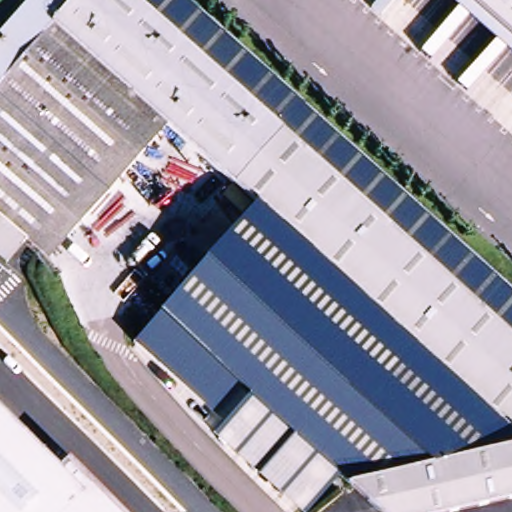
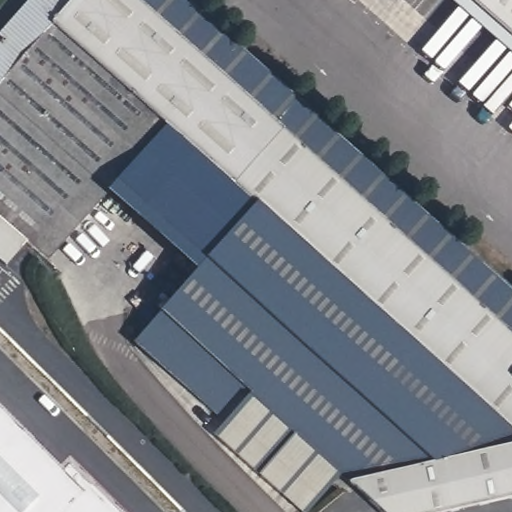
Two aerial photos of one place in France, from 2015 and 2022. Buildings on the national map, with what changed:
unchanged [(26,242),(5,265),(0,261),(0,38),(33,0),(62,0),(67,5),(52,21),(168,125),(47,261),(26,242)]
unchanged [(336,275),(168,125),(52,21),(67,5),(71,0),(134,0),(192,51),(466,292),(476,281),(512,313),(512,431),(336,275)]
unchanged [(156,20),(134,0),(175,0),(156,20)]
unchanged [(446,0),(512,0),(512,58),(446,0)]
new [(168,125),(254,202),(198,272),(108,193),(168,125)]
unchanged [(336,275),(512,431),(512,440),(357,473),(362,480),(344,479),(310,512),(300,512),(216,435),(228,426),(134,342),(258,205),(336,275)]
unchanged [(68,467),(113,512),(0,512),(0,413),(61,474),(68,467)]
unchanged [(444,512),(387,512),(357,473),(512,440),(512,497),(444,512)]

